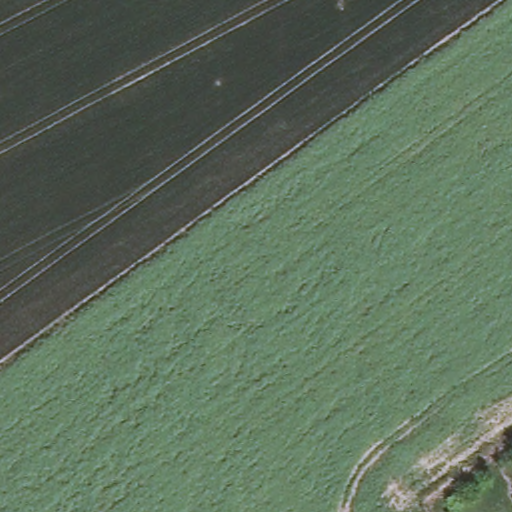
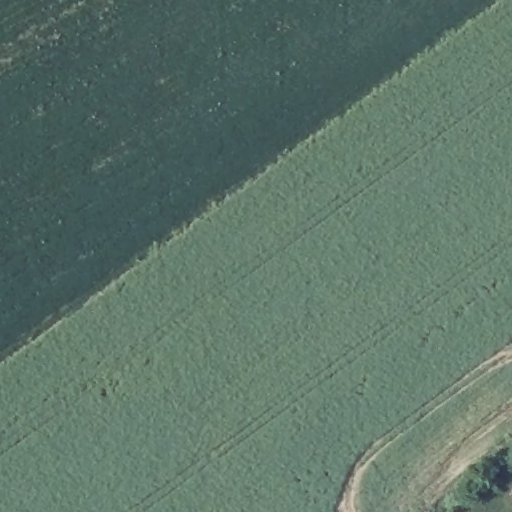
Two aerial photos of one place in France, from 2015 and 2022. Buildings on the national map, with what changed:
[]

